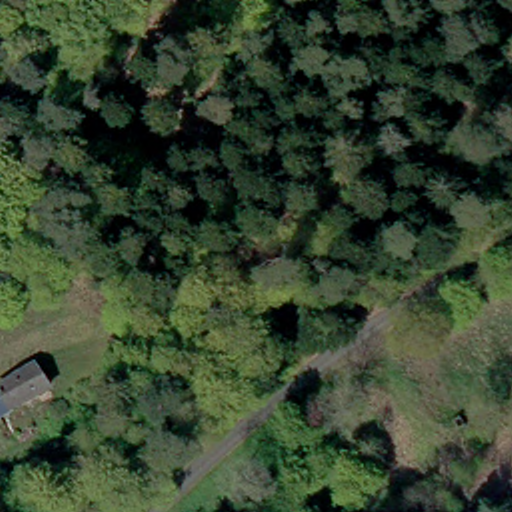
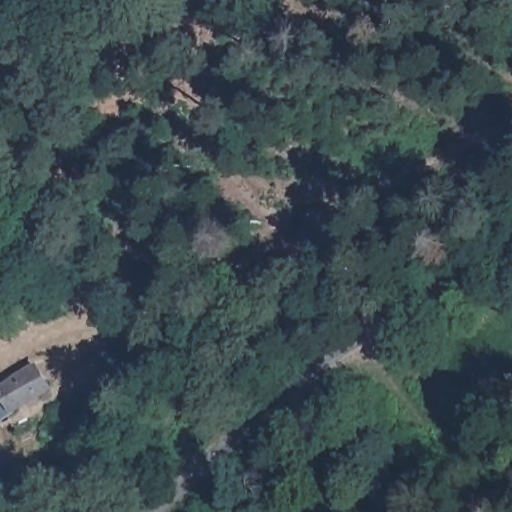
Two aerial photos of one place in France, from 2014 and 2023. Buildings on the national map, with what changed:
unchanged [(8,404),(0,389),(0,382),(17,369),(35,360),(48,382),(8,404)]

